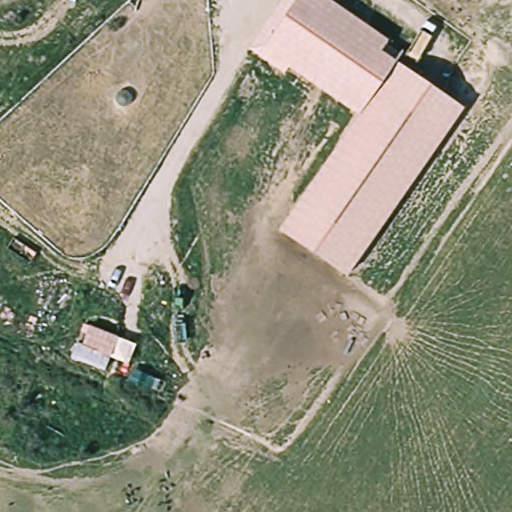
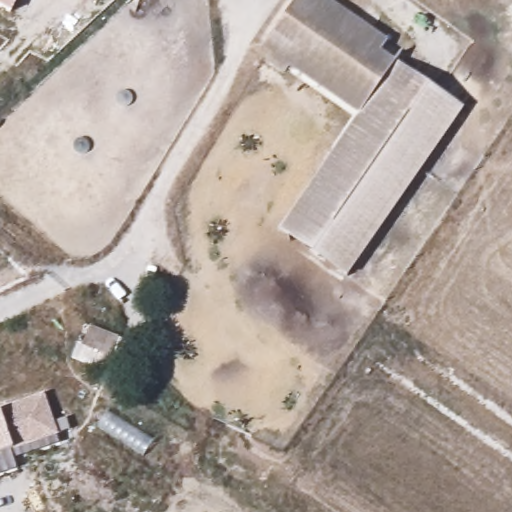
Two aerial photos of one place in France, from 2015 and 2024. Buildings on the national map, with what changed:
new [(12,15),(0,10),(0,0),(19,0),(12,15)]
unchanged [(345,276),(277,228),(356,115),(261,49),(296,0),(331,0),(387,39),(380,50),(463,108),(345,276)]
unchanged [(127,364),(108,357),(103,371),(70,359),(77,341),(82,343),(88,323),(134,341),(127,364)]
new [(12,448),(0,452),(0,410),(43,394),(56,434),(12,448)]

